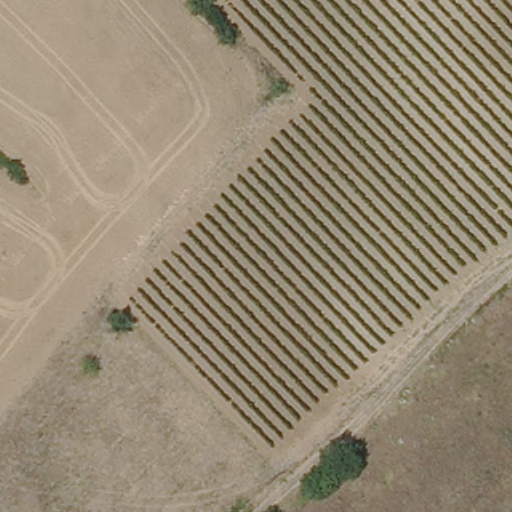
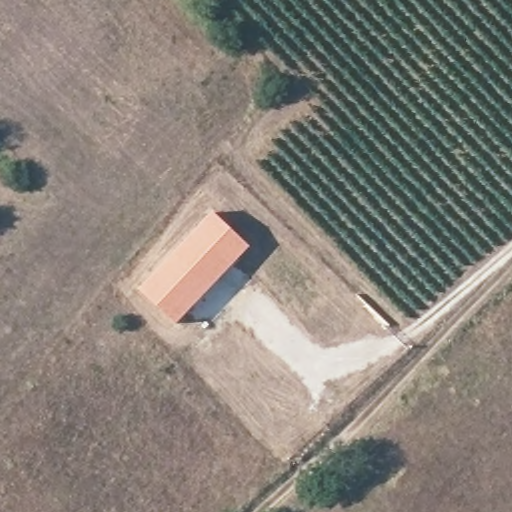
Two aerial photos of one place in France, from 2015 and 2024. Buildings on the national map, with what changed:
new [(213,211),(250,247),(176,325),(139,290),(213,211)]

